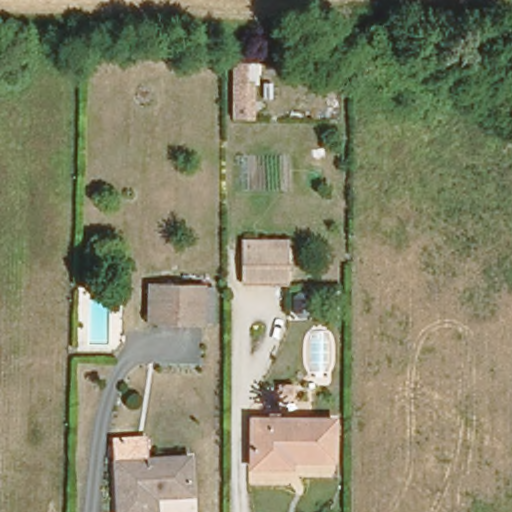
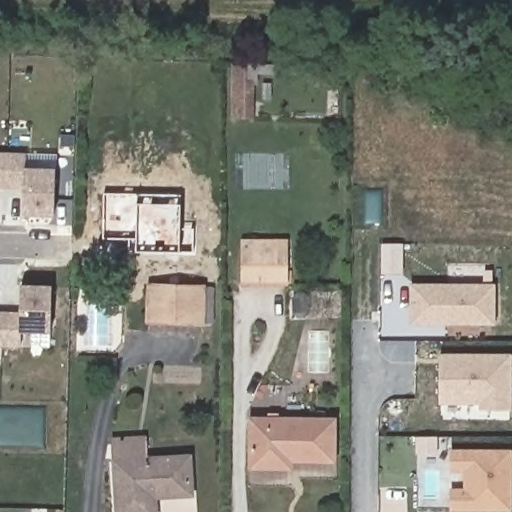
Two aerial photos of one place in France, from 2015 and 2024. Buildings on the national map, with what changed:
demolished [(225,1),(225,2),(206,2),(206,0),(225,0),(225,1)]
unchanged [(245,62),(245,81),(254,80),(255,115),(237,116),(236,62),(245,62)]
new [(26,155),(27,172),(59,172),(57,218),(28,218),(26,189),(0,190),(0,155),(26,155)]
new [(179,252),(136,252),(129,251),(128,238),(103,238),(103,192),(180,193),(181,203),(180,227),(194,228),(193,252),(179,252)]
unchanged [(255,240),(285,239),(286,270),(241,271),(241,232),(255,231),(255,240)]
new [(379,243),(402,243),(402,274),(379,274),(379,243)]
unchanged [(205,281),(205,316),(153,317),(152,281),(205,281)]
new [(408,283),(494,283),(495,325),(408,325),(408,283)]
new [(21,309),(22,284),(53,285),(52,335),(22,334),(22,346),(0,345),(0,310),(21,309)]
new [(512,353),(512,410),(477,410),(477,405),(438,405),(438,353),(512,353)]
unchanged [(331,413),(331,451),(291,450),(290,459),(250,459),(251,414),(331,413)]
unchanged [(142,437),(143,457),(190,455),(190,494),(162,495),(162,489),(153,489),(154,512),(114,512),(113,459),(112,438),(142,437)]
new [(448,472),(448,448),(511,449),(511,512),(448,512),(448,487),(462,487),(462,472),(448,472)]

